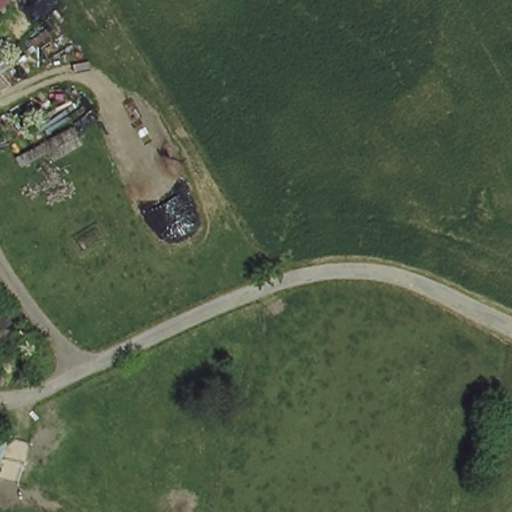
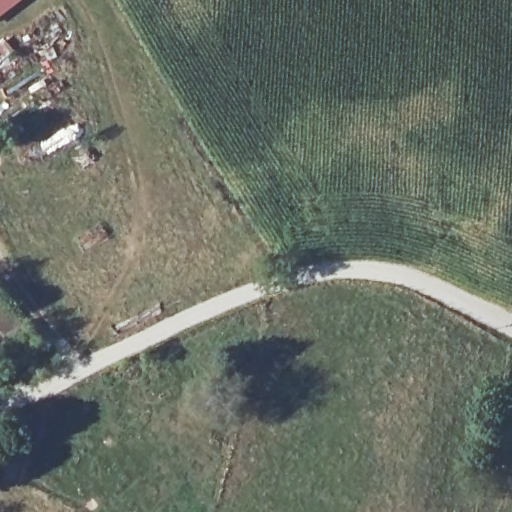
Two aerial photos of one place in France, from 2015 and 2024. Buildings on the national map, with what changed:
unchanged [(11,0),(0,8),(0,0),(11,0)]

